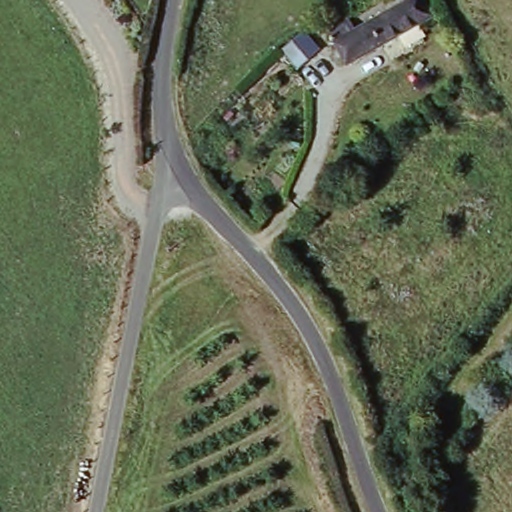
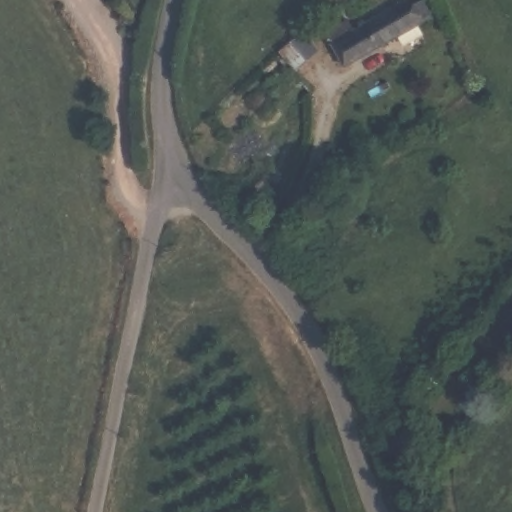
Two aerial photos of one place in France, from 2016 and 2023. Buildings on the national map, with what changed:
unchanged [(346,23),(353,34),(408,3),(421,24),(352,67),(332,31),(346,23)]
unchanged [(280,55),(294,44),(311,62),(298,75),(280,55)]

